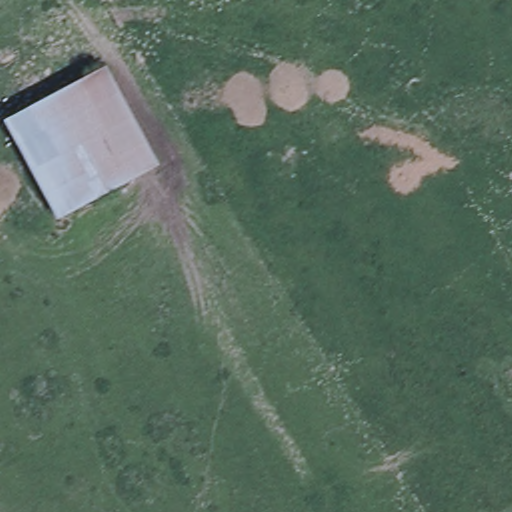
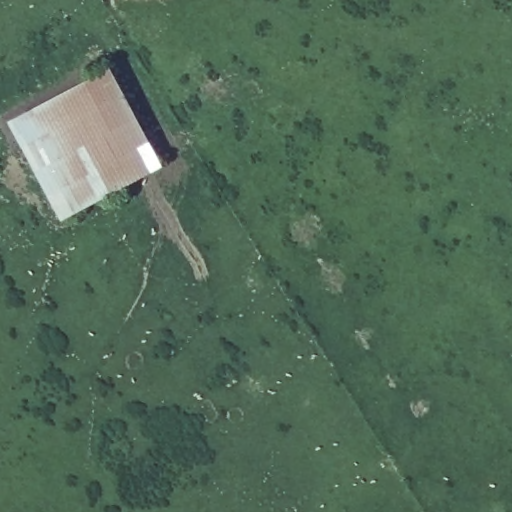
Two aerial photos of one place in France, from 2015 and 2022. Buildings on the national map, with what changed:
unchanged [(109,72),(159,166),(61,218),(11,124),(109,72)]

